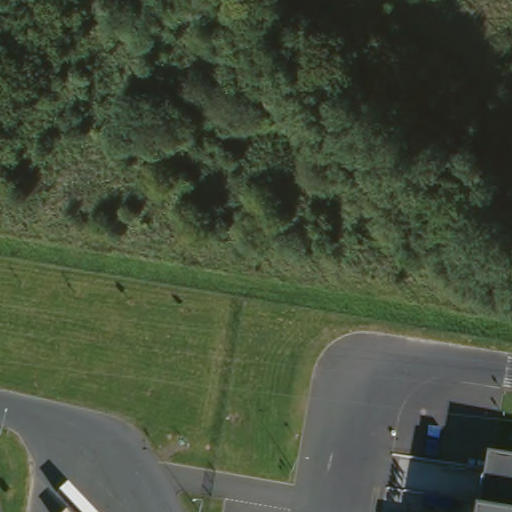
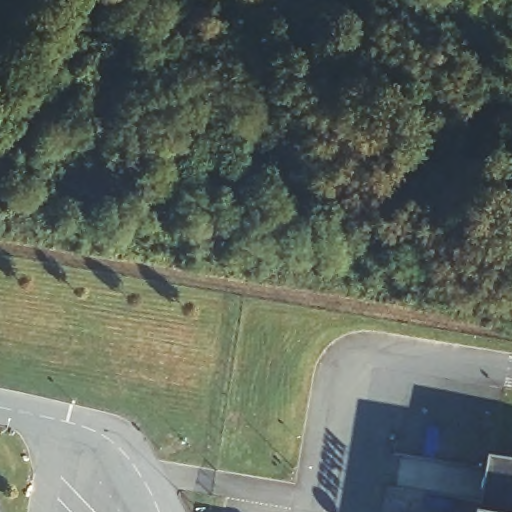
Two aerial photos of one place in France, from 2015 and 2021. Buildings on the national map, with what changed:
unchanged [(512,465),(512,512),(484,512),(493,462),(512,465)]

